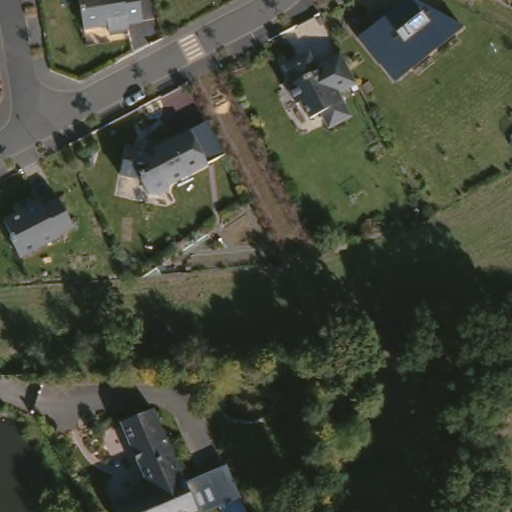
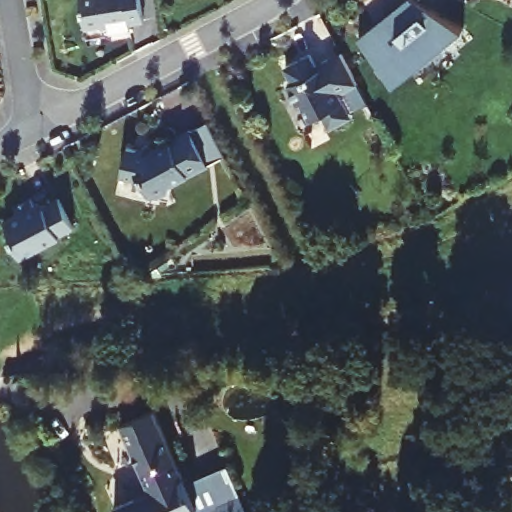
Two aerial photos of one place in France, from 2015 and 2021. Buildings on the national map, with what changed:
unchanged [(129,25),(110,29),(109,21),(85,25),(81,0),(141,0),(144,18),(129,20),(129,25)]
unchanged [(373,18),(383,9),(387,13),(403,0),(416,0),(464,27),(397,82),(358,36),(377,21),(373,18)]
unchanged [(302,104),(297,105),(288,88),(294,85),(285,69),(310,56),(318,73),(324,69),(321,65),(341,54),(353,78),(358,85),(357,85),(339,95),(348,114),(346,120),(334,127),(327,125),(322,114),(311,120),(302,104)]
unchanged [(226,154),(207,164),(190,132),(188,133),(208,121),(226,154)]
unchanged [(169,193),(158,198),(151,196),(149,197),(141,182),(121,178),(126,150),(137,152),(147,146),(151,153),(190,132),(208,166),(171,185),(169,193)]
unchanged [(21,214),(19,212),(36,201),(42,209),(59,203),(73,230),(23,257),(5,222),(21,214)]
unchanged [(114,508),(150,493),(122,426),(155,412),(186,484),(197,512),(116,512),(114,508)]
unchanged [(227,467),(239,495),(199,512),(197,512),(186,484),(227,467)]
unchanged [(3,511),(0,512),(0,503),(3,511)]

